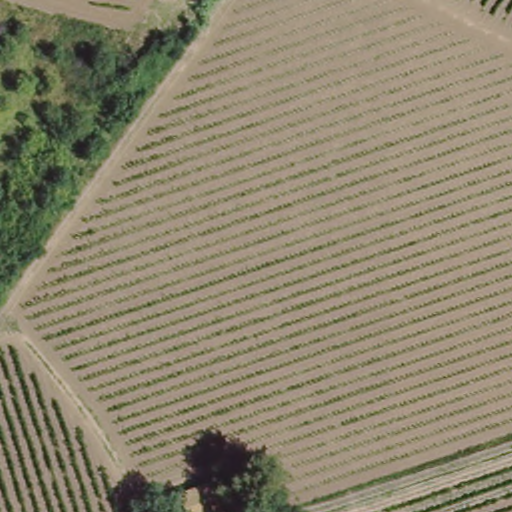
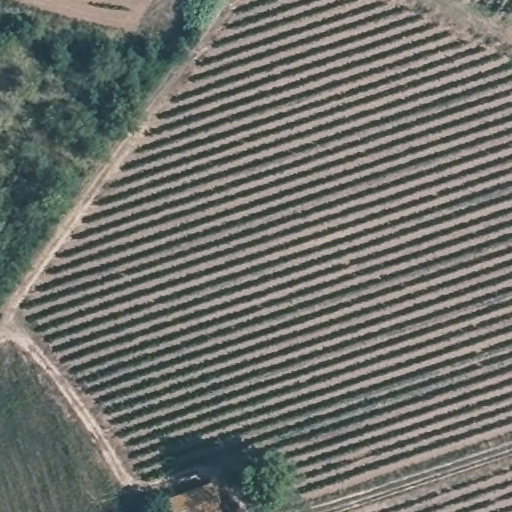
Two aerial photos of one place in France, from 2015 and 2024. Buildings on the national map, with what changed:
unchanged [(158,499),(207,484),(218,512),(163,512),(158,499)]

